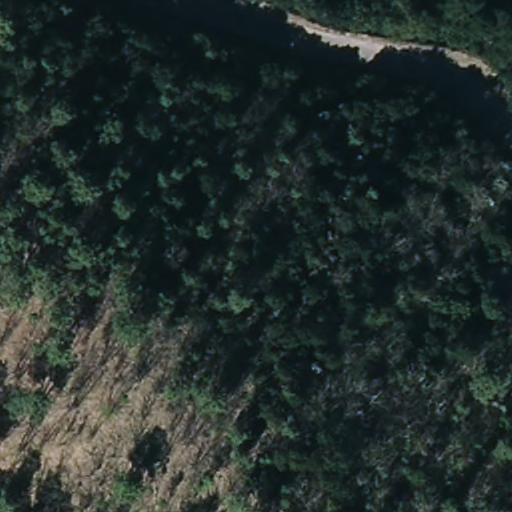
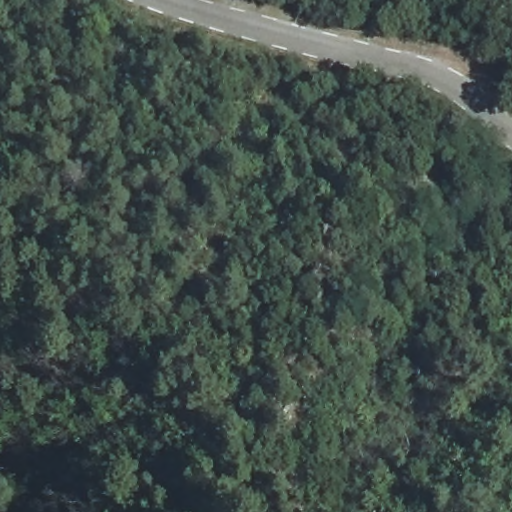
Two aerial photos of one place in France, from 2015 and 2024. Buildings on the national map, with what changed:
[]

